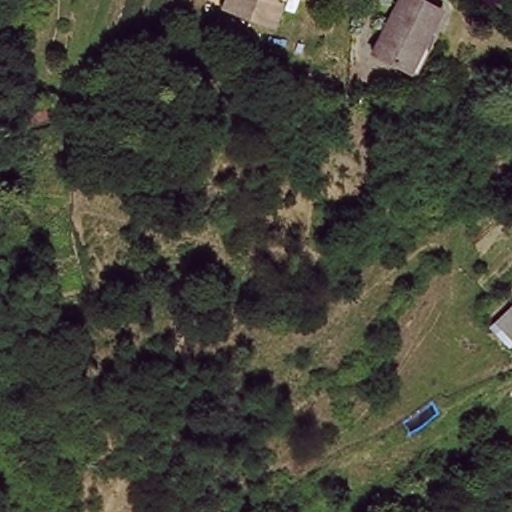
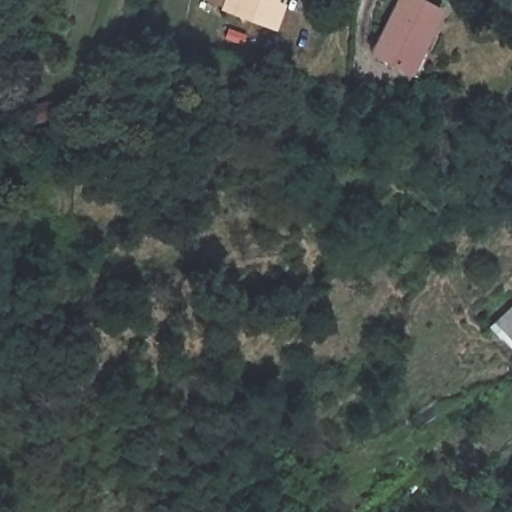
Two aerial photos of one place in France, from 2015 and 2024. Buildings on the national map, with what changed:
unchanged [(223,0),(276,0),(271,9),(260,28),(220,6),(223,0)]
unchanged [(399,0),(401,0),(437,17),(409,75),(371,58),(399,0)]
unchanged [(510,335),(492,318),(512,298),(512,332),(512,333),(510,335)]

